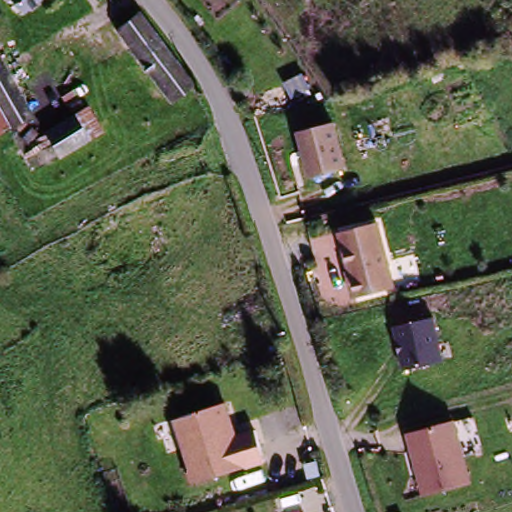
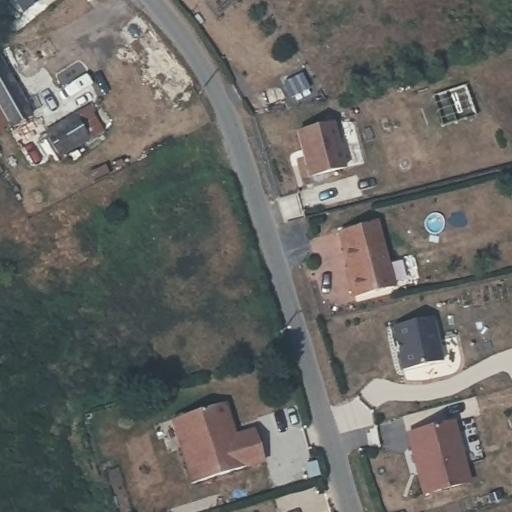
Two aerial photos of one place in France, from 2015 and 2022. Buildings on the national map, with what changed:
unchanged [(19,13),(8,0),(35,0),(19,13)]
unchanged [(171,104),(112,35),(132,18),(157,44),(179,72),(191,87),(171,104)]
unchanged [(32,118),(28,120),(11,130),(0,113),(0,65),(32,118)]
unchanged [(11,130),(0,136),(0,113),(11,130)]
unchanged [(30,137),(68,115),(86,141),(52,158),(30,137)]
unchanged [(303,136),(339,126),(351,170),(315,180),(303,136)]
unchanged [(364,301),(346,235),(383,224),(402,291),(364,301)]
unchanged [(433,315),(444,364),(403,373),(389,326),(433,315)]
unchanged [(245,435),(254,466),(184,485),(174,452),(182,450),(174,421),(219,407),(229,440),(245,435)]
unchanged [(455,420),(473,484),(422,499),(404,434),(455,420)]

